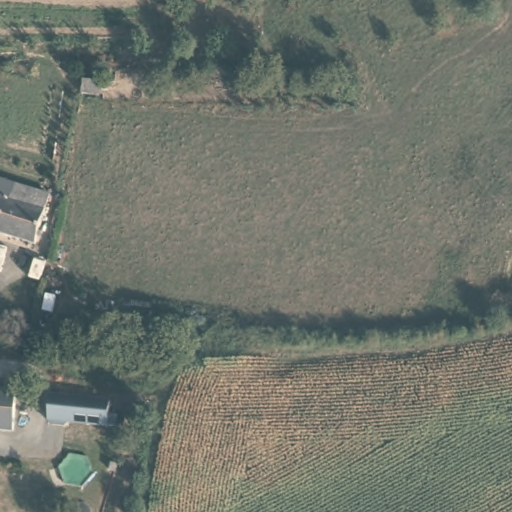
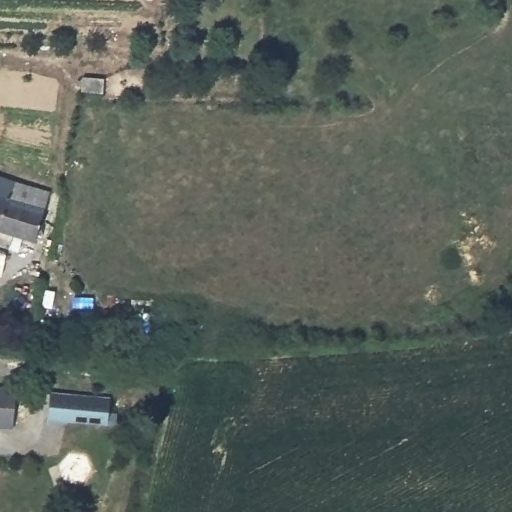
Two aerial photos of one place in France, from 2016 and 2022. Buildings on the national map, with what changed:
unchanged [(106,79),(105,93),(82,93),(84,79),(106,79)]
unchanged [(36,244),(0,233),(0,178),(50,193),(36,244)]
unchanged [(50,393),(108,400),(107,426),(47,421),(50,393)]
unchanged [(7,433),(0,432),(0,394),(11,395),(8,428),(7,433)]

